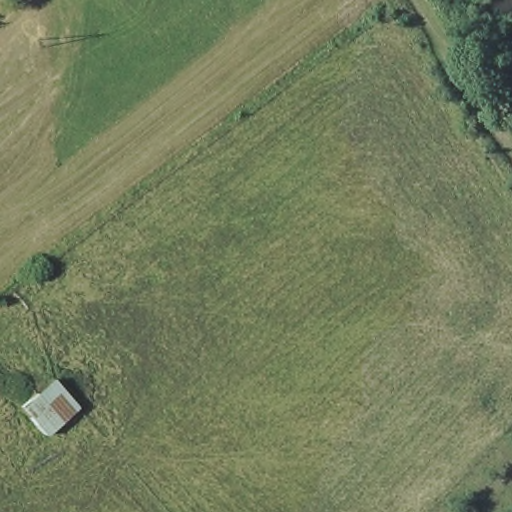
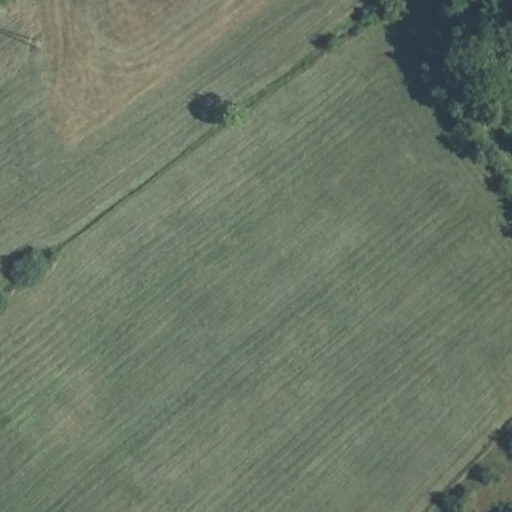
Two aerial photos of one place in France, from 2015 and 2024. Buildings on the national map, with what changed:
demolished [(77,411),(44,439),(17,408),(51,380),(77,411)]

